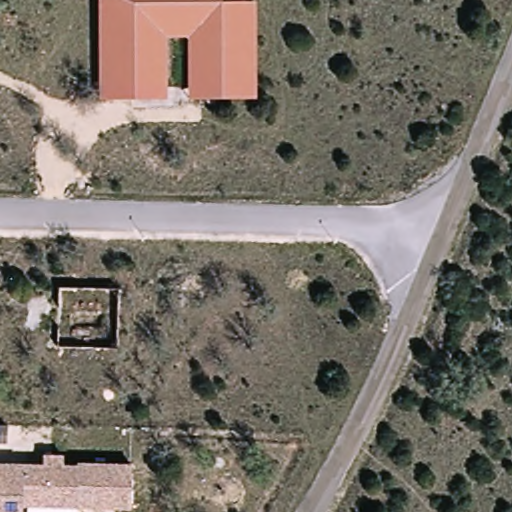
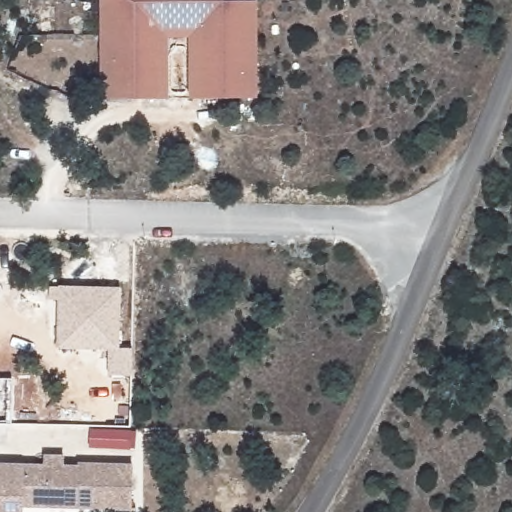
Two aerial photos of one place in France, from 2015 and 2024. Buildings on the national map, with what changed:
unchanged [(102,2),(102,0),(256,0),(257,32),(257,54),(257,75),(257,100),(204,100),(202,22),(156,22),(156,100),(102,101),(102,79),(102,56),(102,34),(102,12),(102,2)]
unchanged [(190,100),(190,36),(168,36),(168,99),(156,100),(156,22),(202,22),(204,100),(190,100)]
new [(57,350),(58,300),(50,299),(50,287),(58,287),(58,285),(120,287),(120,348),(132,347),(132,375),(109,375),(107,350),(57,350)]
new [(0,378),(10,378),(10,423),(0,423),(0,378)]
new [(124,430),(124,427),(131,427),(130,450),(89,448),(90,428),(124,430)]
unchanged [(133,507),(22,510),(22,512),(0,512),(0,469),(132,467),(133,507)]

